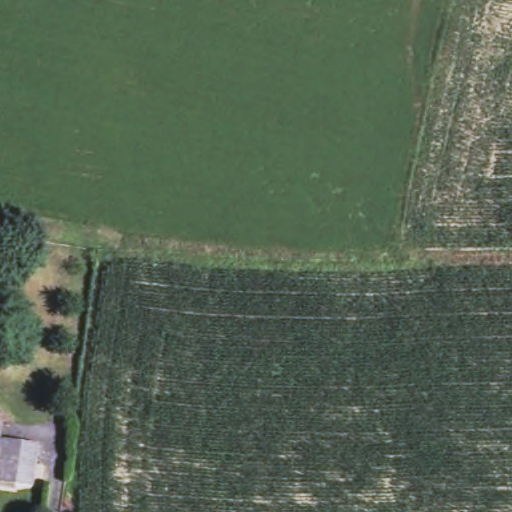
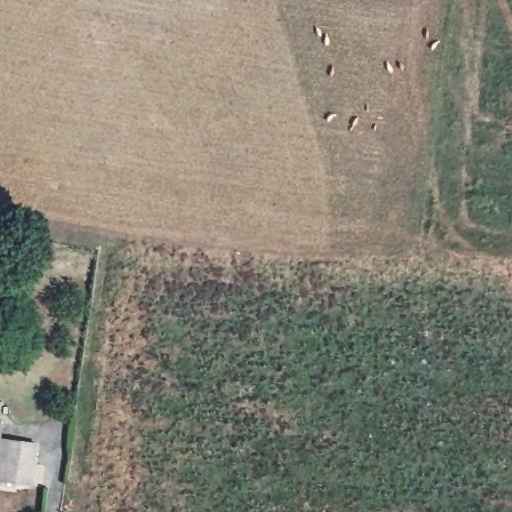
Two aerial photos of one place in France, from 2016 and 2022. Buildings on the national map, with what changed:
unchanged [(5,446),(22,449),(14,496),(0,493),(0,433),(7,435),(5,446)]

